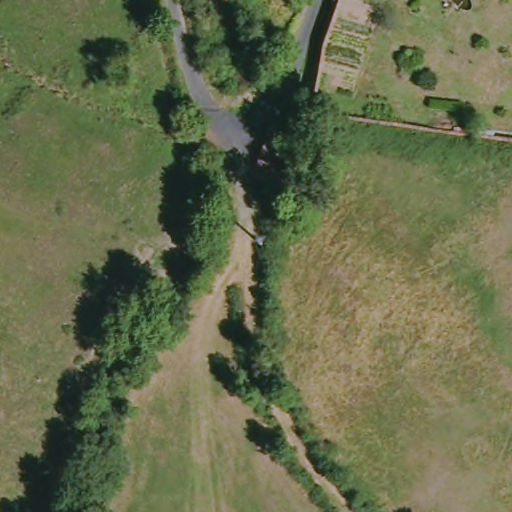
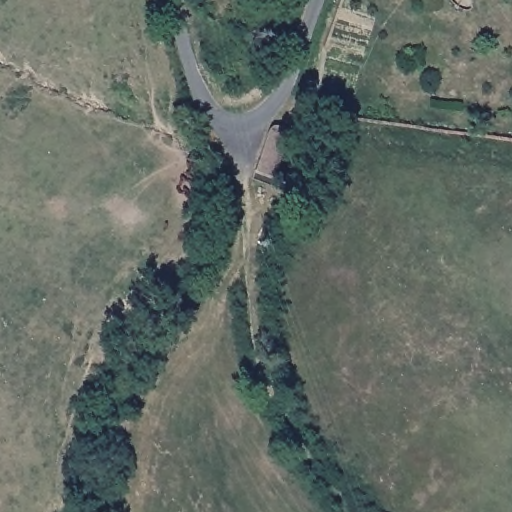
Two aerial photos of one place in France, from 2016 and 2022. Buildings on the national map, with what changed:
unchanged [(259,174),(274,129),(293,132),(278,175),(259,174)]

